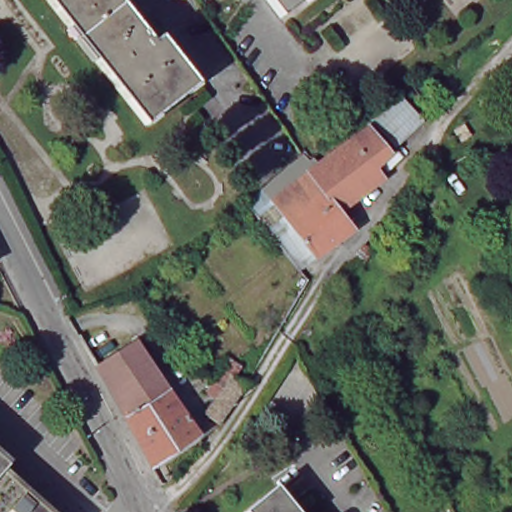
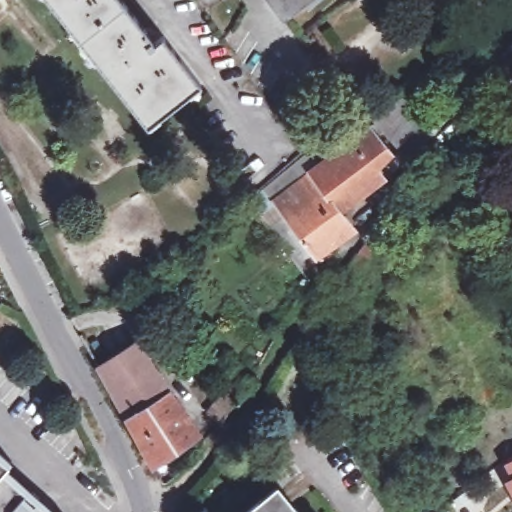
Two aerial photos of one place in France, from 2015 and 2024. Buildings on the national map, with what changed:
unchanged [(205,85),(152,127),(53,0),(125,0),(158,42),(167,36),(205,85)]
unchanged [(306,0),(285,16),(272,0),(306,0)]
unchanged [(312,269),(282,228),(297,216),(277,187),(317,154),(322,161),(325,159),(329,163),(378,124),(380,126),(387,120),(383,115),(410,95),(435,119),(410,143),(395,128),(387,133),(402,151),(385,166),(395,177),(352,210),(365,226),(325,256),(327,258),(312,269)]
unchanged [(143,346),(204,436),(160,468),(103,370),(143,346)]
unchanged [(210,399),(228,372),(245,382),(217,423),(202,412),(210,399)]
unchanged [(11,465),(5,472),(49,512),(0,512),(0,456),(11,465)]
new [(509,477),(503,464),(512,460),(512,499),(502,481),(509,477)]
unchanged [(267,501),(280,491),(285,497),(297,512),(255,512),(267,501)]

